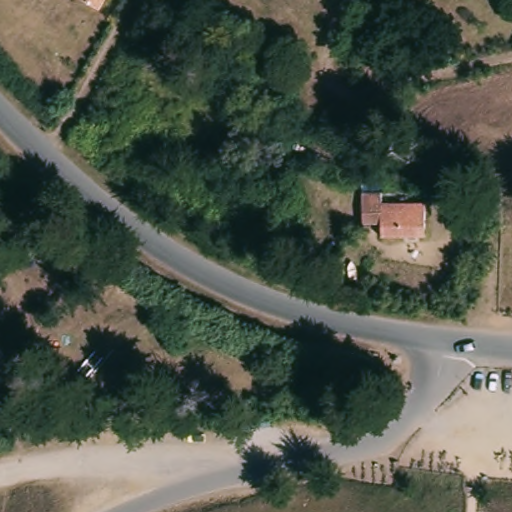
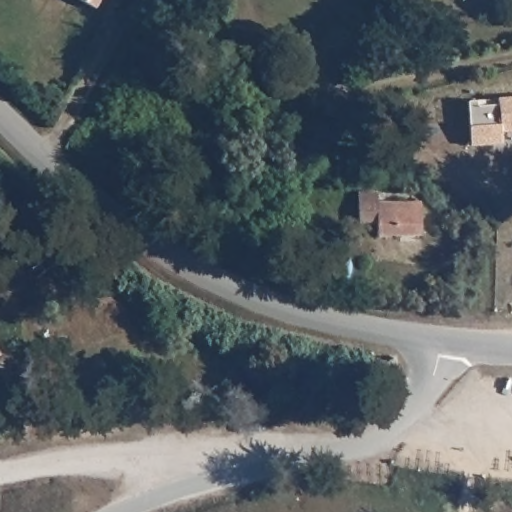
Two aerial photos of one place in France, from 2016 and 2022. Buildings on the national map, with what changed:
unchanged [(99,10),(81,0),(103,0),(99,10)]
new [(503,132),(504,145),(471,147),(469,101),(512,97),(512,132),(503,132)]
unchanged [(378,231),(378,216),(360,217),(360,187),(379,187),(379,197),(422,197),(422,230),(378,231)]
unchanged [(0,355),(0,354),(1,355),(0,355)]

